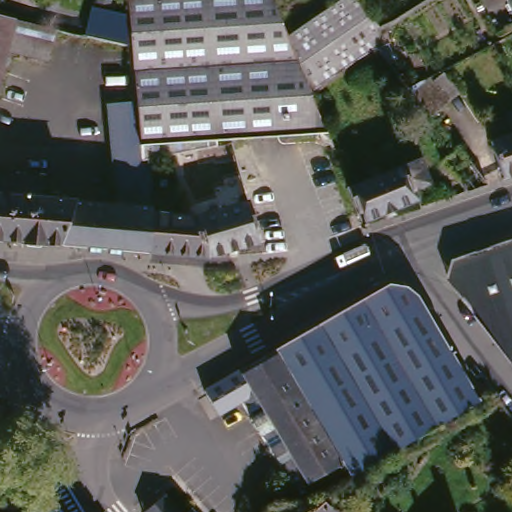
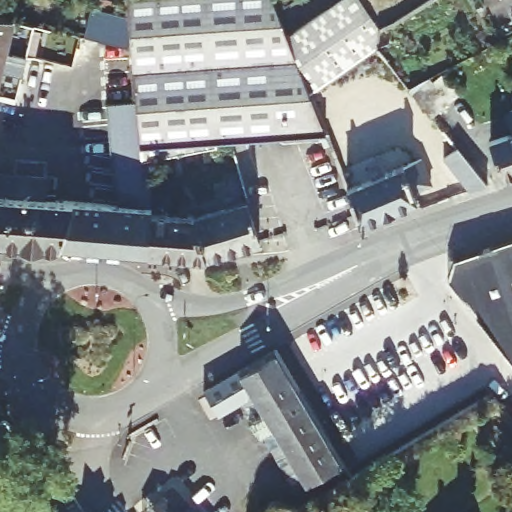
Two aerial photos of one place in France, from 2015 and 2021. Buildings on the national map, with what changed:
unchanged [(314,132),(227,143),(227,146),(227,147),(222,148),(222,145),(214,146),(214,150),(194,152),(169,157),(168,157),(153,159),(147,160),(135,162),(131,110),(127,48),(125,20),(123,0),(272,0),(279,19),(282,29),(286,38),(307,94),(312,107),(322,132),(326,143),(318,144),(314,132)]
unchanged [(346,0),(353,0),(382,42),(307,94),(286,38),(346,0)]
unchanged [(498,0),(512,0),(512,27),(498,0)]
unchanged [(81,38),(89,15),(125,20),(127,48),(81,38)]
unchanged [(49,31),(42,64),(0,56),(0,20),(43,30),(49,31)]
unchanged [(426,72),(431,78),(442,69),(457,88),(445,97),(429,109),(418,95),(407,82),(426,72)]
unchanged [(131,110),(135,162),(145,208),(112,206),(101,110),(131,110)]
unchanged [(498,186),(486,147),(512,138),(512,181),(498,186)]
unchanged [(465,187),(440,156),(456,142),(485,179),(485,180),(475,184),(465,187)]
unchanged [(423,189),(405,197),(410,208),(355,230),(342,192),(363,185),(360,179),(371,174),(373,181),(414,165),(418,177),(423,189)]
unchanged [(67,202),(68,202),(54,249),(0,245),(0,198),(49,201),(67,202)]
unchanged [(112,206),(145,208),(145,216),(140,216),(144,255),(54,249),(68,202),(112,206)]
unchanged [(180,219),(187,220),(242,204),(252,246),(204,259),(185,257),(174,217),(180,219)]
unchanged [(174,217),(185,257),(144,255),(140,216),(145,216),(174,217)]
unchanged [(457,262),(512,244),(512,253),(501,257),(445,284),(457,262)]
unchanged [(445,284),(501,257),(512,253),(512,373),(445,284)]
demolished [(383,296),(405,300),(415,307),(473,411),(348,487),(344,479),(340,472),(273,361),(383,296)]
unchanged [(292,497),(261,445),(259,446),(248,427),(249,426),(241,412),(217,426),(204,402),(273,361),(340,472),(292,497)]
unchanged [(166,512),(145,512),(157,502),(166,512)]
unchanged [(339,512),(321,512),(333,505),(339,512)]

